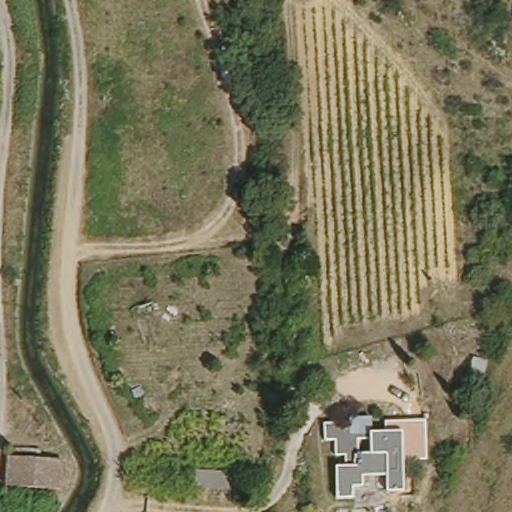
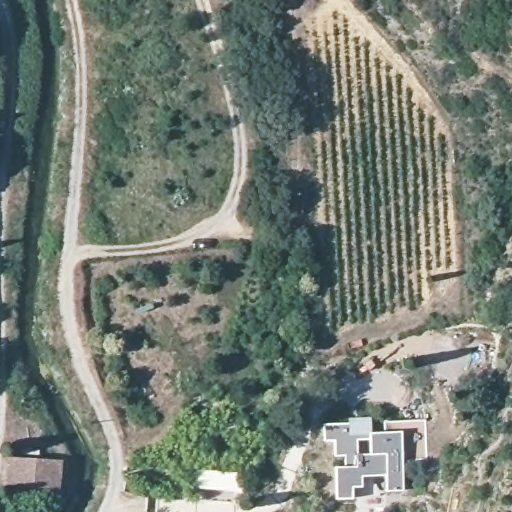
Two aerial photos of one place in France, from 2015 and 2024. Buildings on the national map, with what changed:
unchanged [(399,431),(386,432),(385,420),(426,418),(427,457),(400,459),(399,431)]
unchanged [(352,424),(352,433),(399,431),(401,492),(383,493),(383,477),(359,477),(359,487),(352,487),(352,501),(332,501),(332,469),(344,468),(344,459),(332,459),(332,445),(322,445),(321,424),(352,424)]
unchanged [(59,459),(57,489),(3,487),(5,457),(59,459)]
unchanged [(227,488),(180,484),(181,469),(228,472),(228,484),(227,488)]

